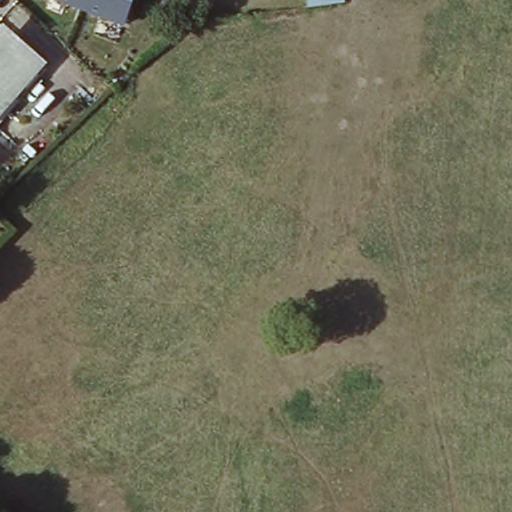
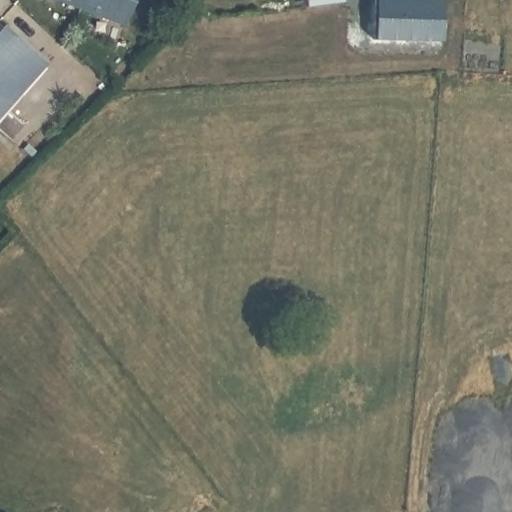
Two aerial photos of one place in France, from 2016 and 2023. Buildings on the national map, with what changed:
unchanged [(125,28),(52,0),(134,0),(125,28)]
demolished [(345,2),(306,8),(306,0),(344,0),(345,2)]
new [(345,2),(306,8),(306,0),(344,0),(345,2)]
new [(443,40),(373,39),(375,0),(444,0),(443,40)]
unchanged [(12,34),(47,61),(0,118),(0,33),(5,28),(12,34)]

